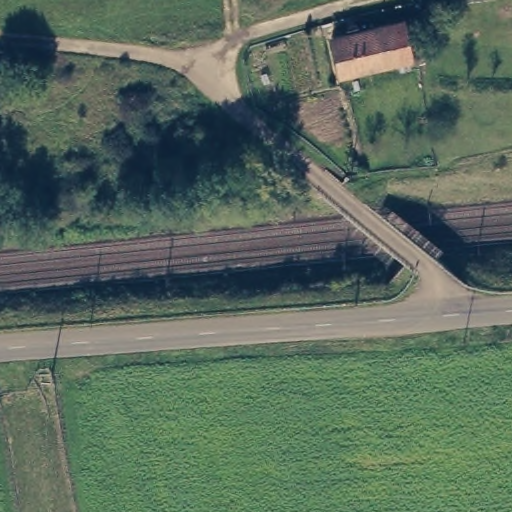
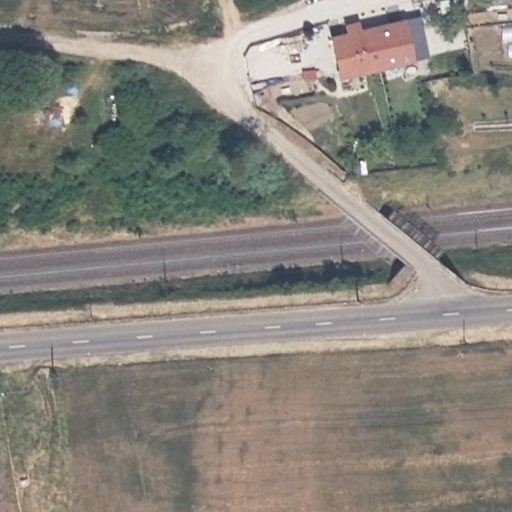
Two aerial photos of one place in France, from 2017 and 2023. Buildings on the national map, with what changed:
unchanged [(396,75),(392,64),(341,72),(335,30),(397,20),(407,18),(415,66),(409,68),(405,73),(396,75)]

